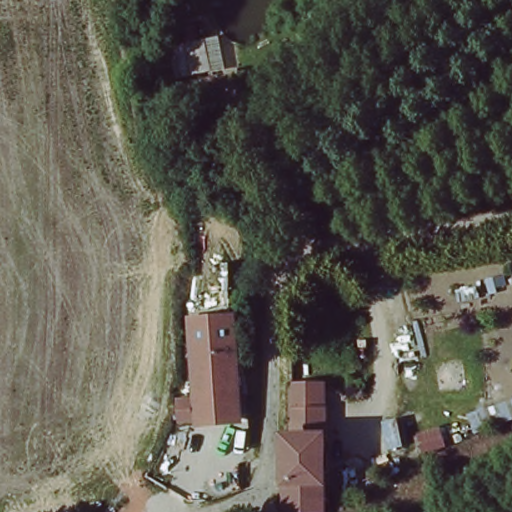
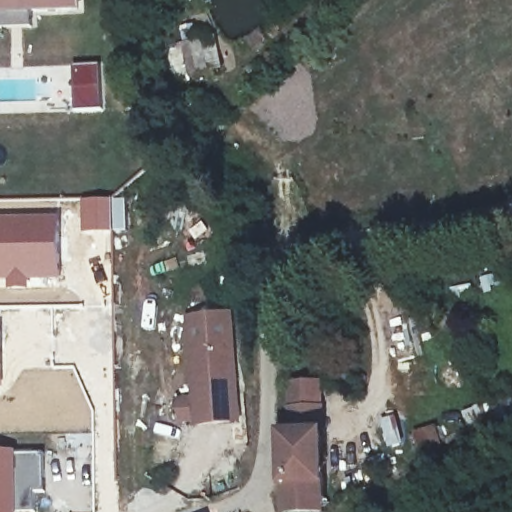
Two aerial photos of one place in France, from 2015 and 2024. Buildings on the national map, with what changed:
new [(79,0),(80,10),(29,11),(30,27),(0,28),(0,0),(79,0)]
new [(83,198),(128,199),(129,233),(83,236),(83,198)]
new [(66,215),(64,282),(33,283),(32,290),(0,288),(0,216),(66,215)]
unchanged [(194,427),(184,315),(235,311),(243,423),(194,427)]
new [(6,324),(6,393),(0,393),(0,324),(6,324)]
unchanged [(280,427),(288,427),(288,379),(324,380),(326,512),(278,512),(280,427)]
unchanged [(443,444),(419,455),(409,433),(437,426),(443,444)]
new [(45,492),(34,492),(34,512),(15,512),(0,512),(0,452),(15,452),(44,454),(45,492)]

